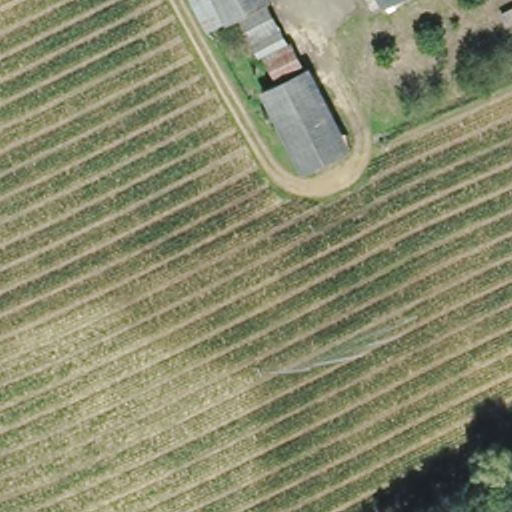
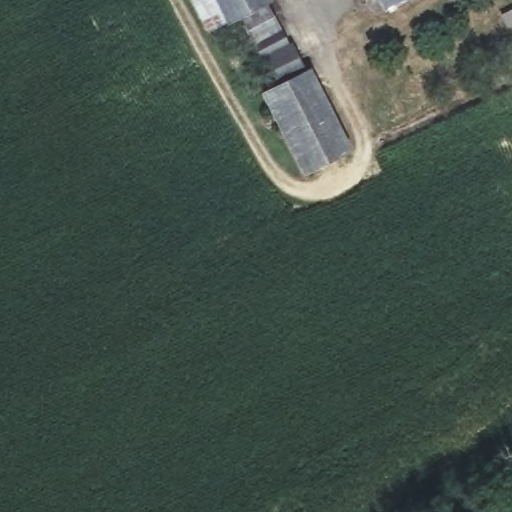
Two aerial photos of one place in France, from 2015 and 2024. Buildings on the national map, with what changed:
unchanged [(185,0),(221,0),(213,4),(190,11),(185,0)]
unchanged [(247,16),(240,0),(270,0),(288,46),(298,41),(310,71),(272,90),(243,19),(247,16)]
unchanged [(375,0),(379,0),(375,1),(375,0)]
unchanged [(305,171),(301,162),(268,91),(272,90),(310,71),(316,70),(346,143),(350,151),(305,171)]

